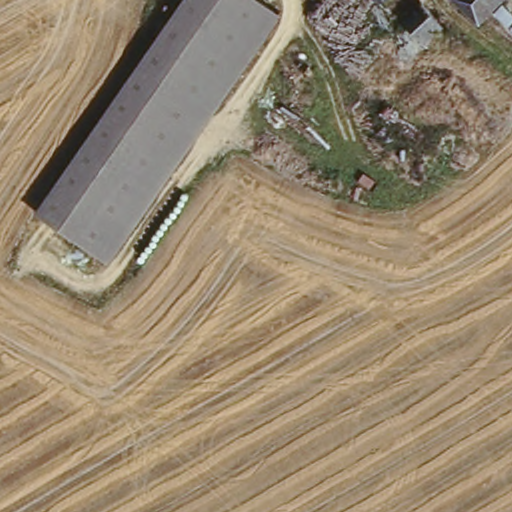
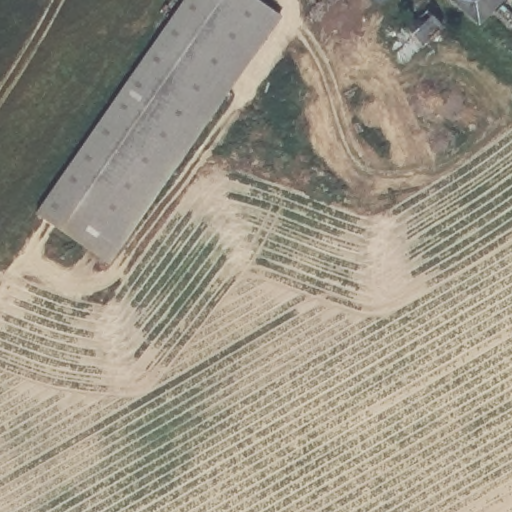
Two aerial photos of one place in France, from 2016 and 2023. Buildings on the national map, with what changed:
unchanged [(280,10),(107,257),(39,208),(180,0),(265,0),(280,10)]
unchanged [(469,0),(506,0),(489,19),(469,0)]
unchanged [(445,30),(422,49),(398,25),(420,2),(445,30)]

